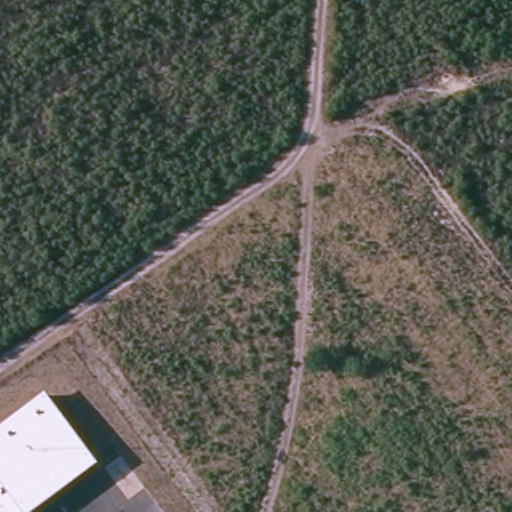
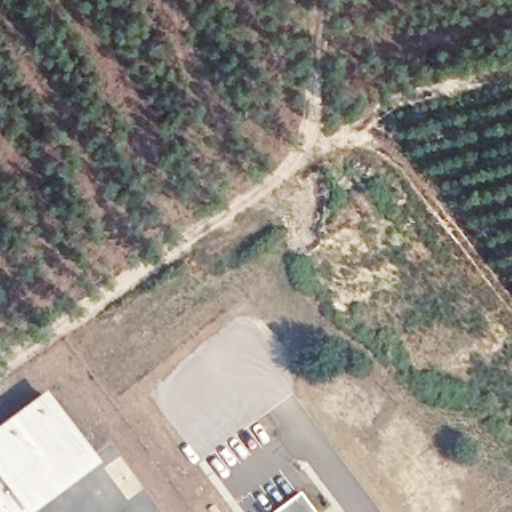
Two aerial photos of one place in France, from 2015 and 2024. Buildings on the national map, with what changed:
unchanged [(0,431),(49,395),(94,457),(29,505),(33,511),(32,512),(0,512),(0,431)]
new [(314,512),(275,512),(300,493),(314,512)]

